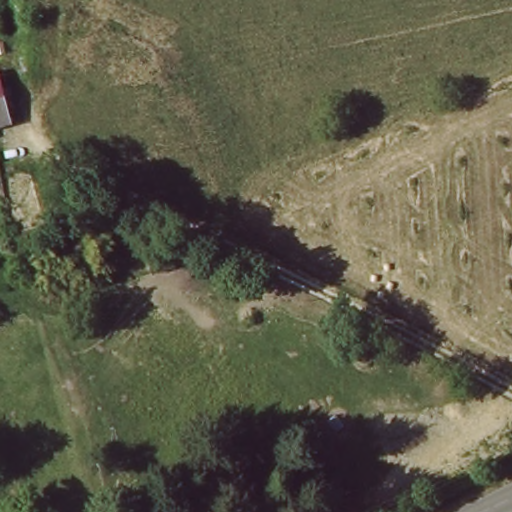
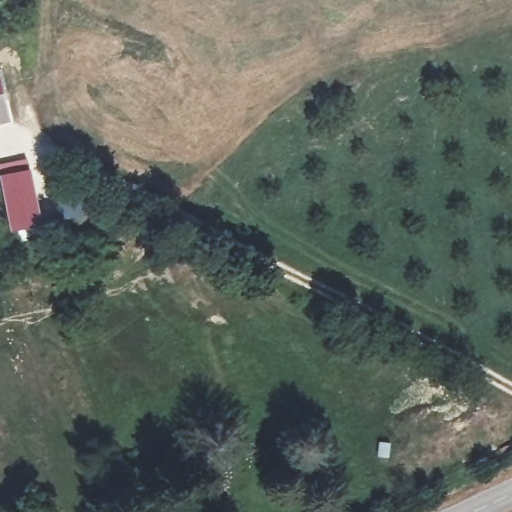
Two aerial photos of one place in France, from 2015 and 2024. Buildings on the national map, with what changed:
unchanged [(9,124),(0,126),(0,95),(9,124)]
new [(0,182),(0,164),(27,159),(41,228),(11,234),(0,182)]

